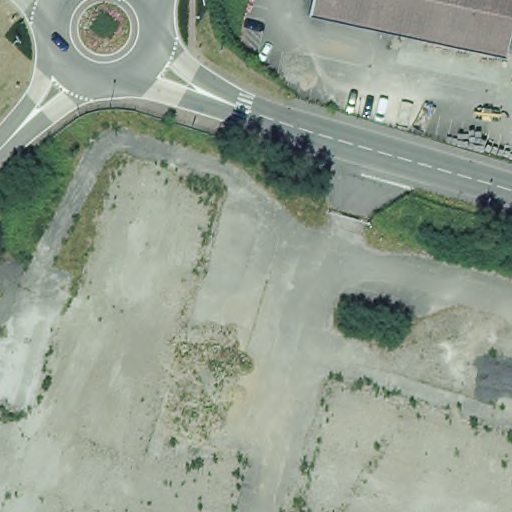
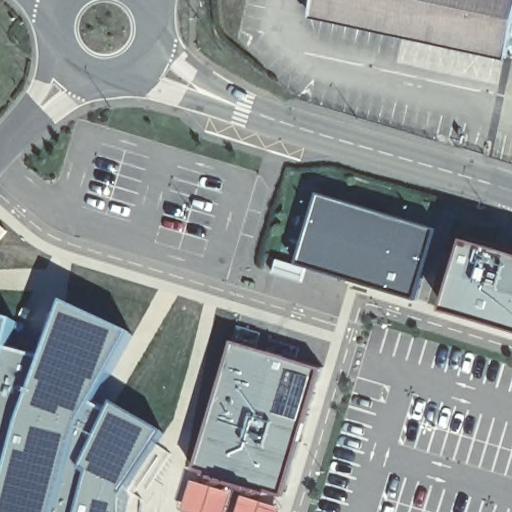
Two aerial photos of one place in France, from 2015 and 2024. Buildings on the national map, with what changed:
unchanged [(308,13),(310,0),(512,0),(512,25),(506,53),(308,13)]
new [(441,229),(426,301),(303,265),(321,193),(441,229)]
new [(451,310),(474,240),(512,251),(512,328),(451,310)]
new [(8,350),(40,360),(63,302),(128,333),(87,405),(103,413),(110,402),(155,432),(115,491),(114,512),(0,512),(0,316),(15,320),(8,350)]
new [(326,367),(283,497),(196,470),(235,341),(326,367)]

